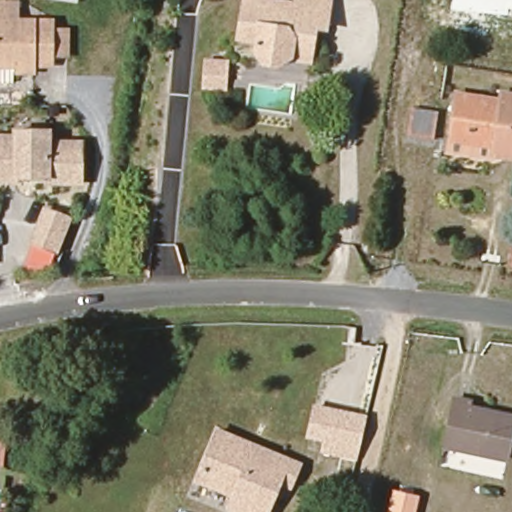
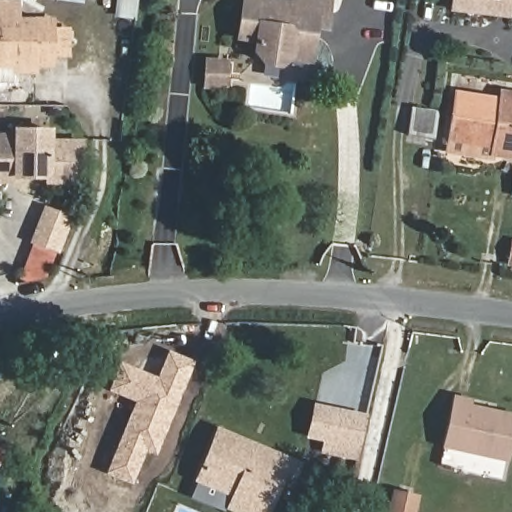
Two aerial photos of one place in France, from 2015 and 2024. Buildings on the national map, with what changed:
unchanged [(80,2),(71,0),(80,0),(80,2)]
unchanged [(327,27),(317,26),(313,54),(292,51),(290,62),(280,66),(265,64),(257,52),(258,40),(237,37),(243,0),(268,0),(296,4),(296,0),(331,0),(327,27)]
new [(511,11),(510,19),(448,12),(449,0),(512,0),(512,11),(511,11)]
unchanged [(35,70),(35,80),(15,80),(15,70),(0,69),(0,25),(2,25),(2,7),(24,8),(23,26),(52,27),(50,70),(35,70)]
unchanged [(226,89),(206,86),(209,61),(230,64),(226,89)]
unchanged [(450,140),(457,94),(502,101),(505,93),(512,94),(512,158),(493,156),(449,149),(450,140)]
unchanged [(433,115),(430,137),(410,135),(413,112),(433,115)]
unchanged [(0,132),(17,132),(17,127),(51,127),(51,139),(84,140),(82,180),(47,179),(47,172),(16,171),(16,177),(0,177),(0,132)]
unchanged [(56,252),(35,245),(47,212),(69,220),(56,252)]
new [(106,473),(134,401),(107,391),(118,362),(157,377),(167,350),(195,361),(157,456),(146,451),(132,484),(106,473)]
unchanged [(469,399),(468,407),(512,415),(512,427),(505,461),(442,448),(452,397),(469,399)]
unchanged [(367,414),(358,461),(318,455),(321,441),(303,438),(312,402),(367,414)]
unchanged [(231,501),(232,498),(195,482),(215,433),(297,467),(288,489),(277,485),(266,512),(231,512),(227,510),(231,501)]
unchanged [(387,512),(392,487),(420,495),(416,512),(387,512)]

